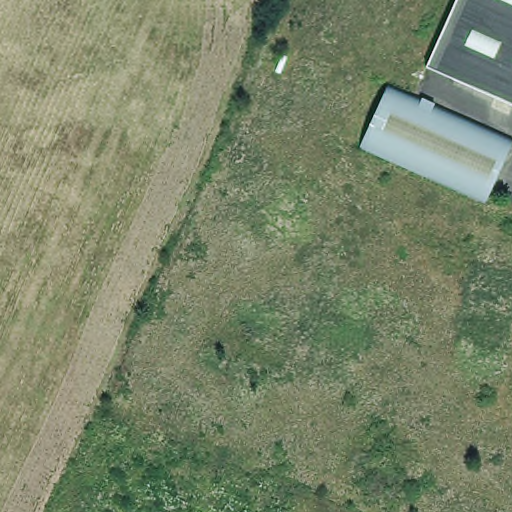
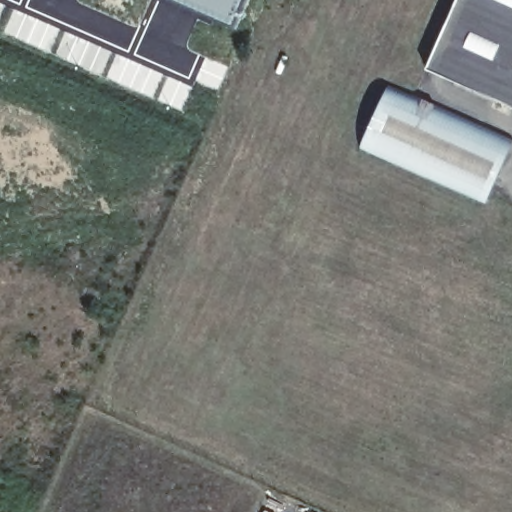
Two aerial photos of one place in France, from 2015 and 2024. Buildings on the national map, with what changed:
new [(175,0),(245,0),(234,24),(175,0)]
unchanged [(450,0),(512,0),(512,108),(421,68),(450,0)]
unchanged [(511,135),(483,200),(356,143),(383,80),(511,135)]

